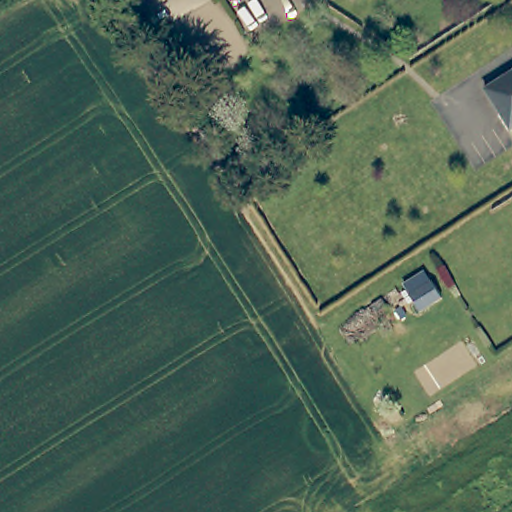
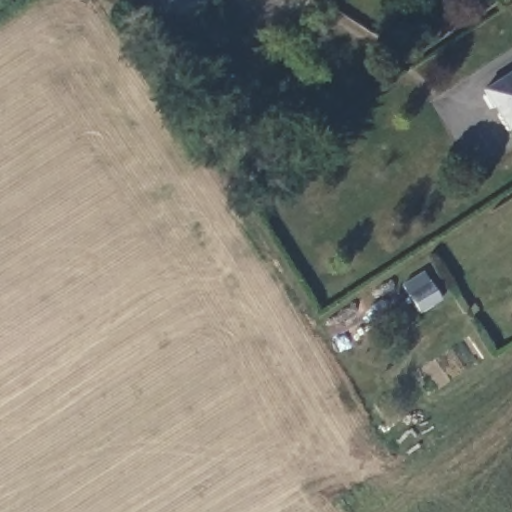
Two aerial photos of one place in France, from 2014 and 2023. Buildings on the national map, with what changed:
unchanged [(512,128),(488,90),(512,74),(512,128)]
unchanged [(447,299),(426,312),(416,295),(437,282),(447,299)]

